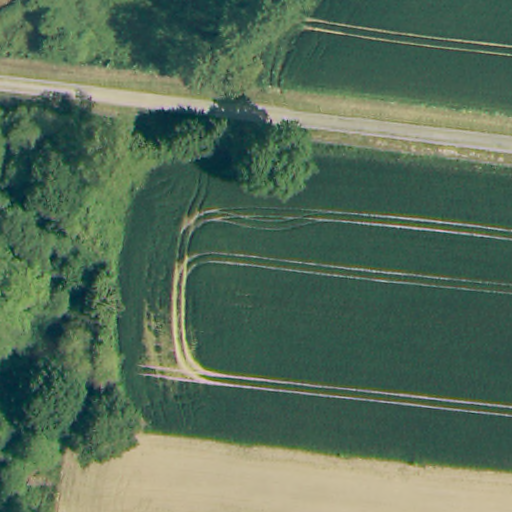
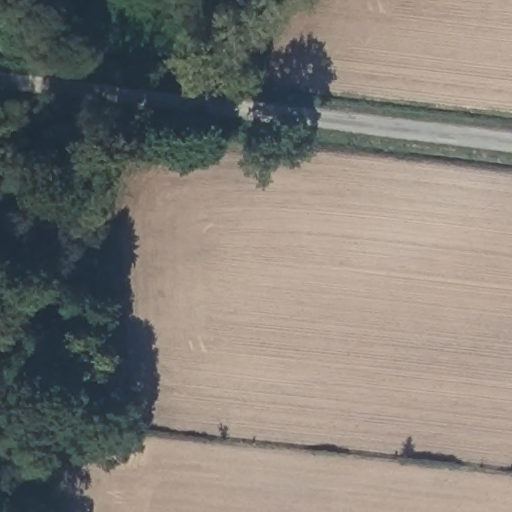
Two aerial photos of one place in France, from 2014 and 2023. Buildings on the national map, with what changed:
unchanged [(106,380),(106,395),(93,396),(93,380),(106,380)]

